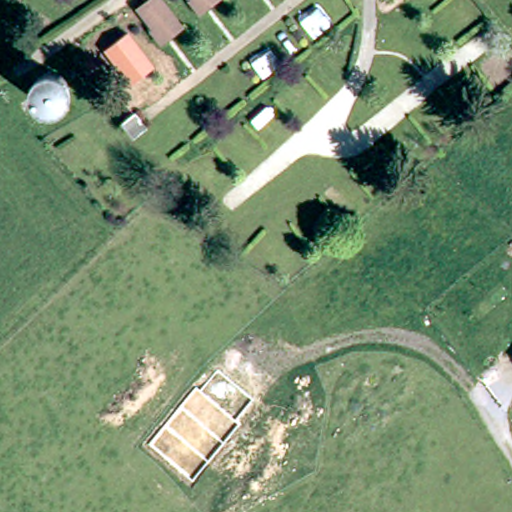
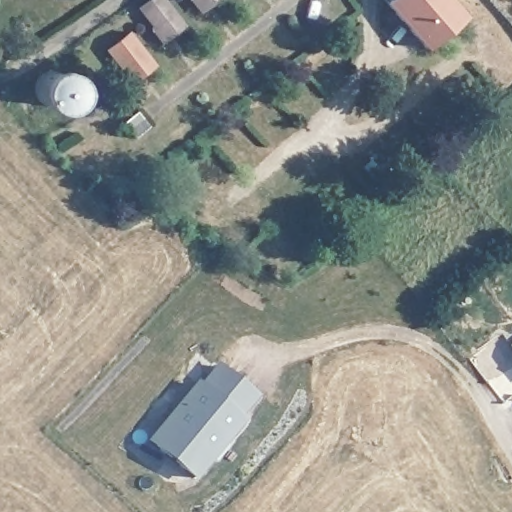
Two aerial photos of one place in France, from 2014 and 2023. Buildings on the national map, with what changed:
unchanged [(166,40),(158,28),(159,27),(143,4),(149,0),(171,0),(187,21),(176,29),(178,32),(166,40)]
unchanged [(201,16),(192,4),(194,2),(192,0),(218,0),(211,5),(213,7),(201,16)]
new [(464,15),(425,49),(384,2),(387,0),(452,0),(464,15)]
demolished [(497,11),(488,0),(509,0),(497,11)]
new [(110,47),(133,30),(158,64),(148,72),(136,82),(124,67),(125,67),(110,47)]
new [(253,396),(237,416),(240,419),(223,440),(217,436),(204,452),(209,456),(193,476),(149,440),(197,383),(201,387),(218,367),(253,396)]

